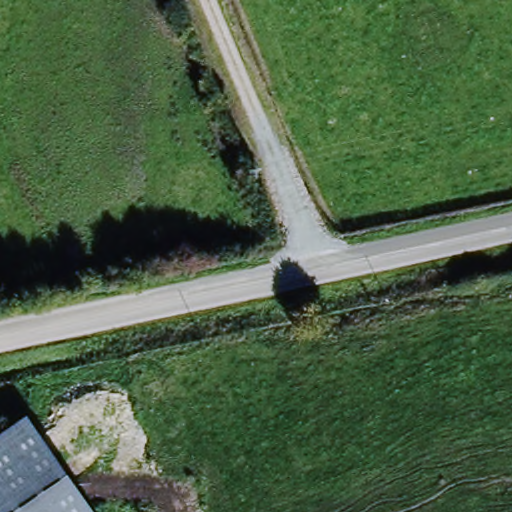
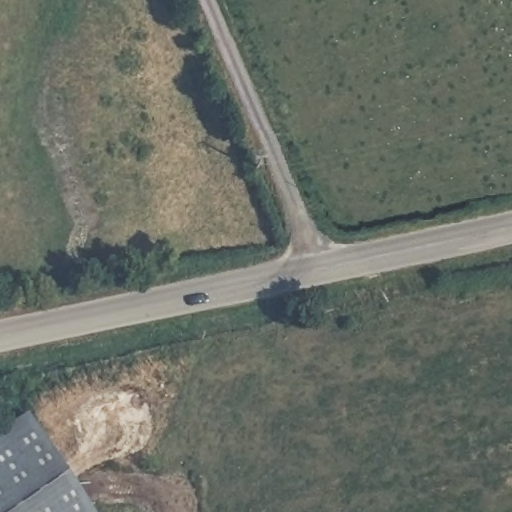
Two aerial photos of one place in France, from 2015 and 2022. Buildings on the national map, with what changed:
unchanged [(0,512),(0,430),(26,412),(92,512),(0,512)]

